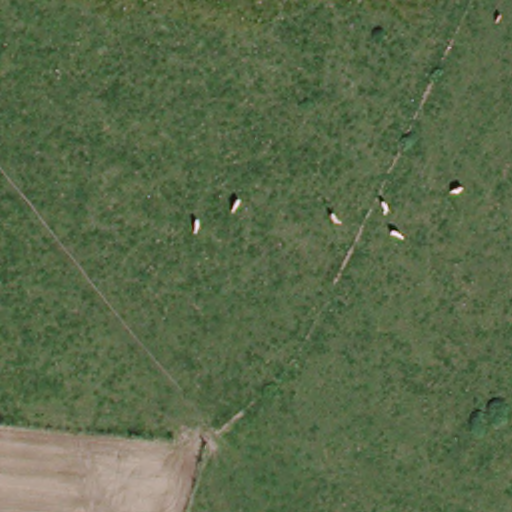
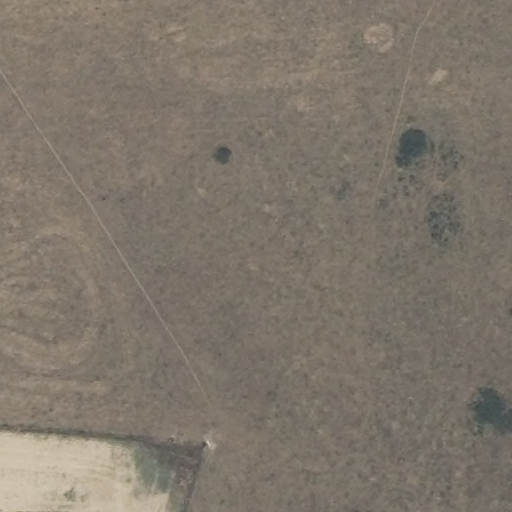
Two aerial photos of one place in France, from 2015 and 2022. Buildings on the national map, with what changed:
[]

